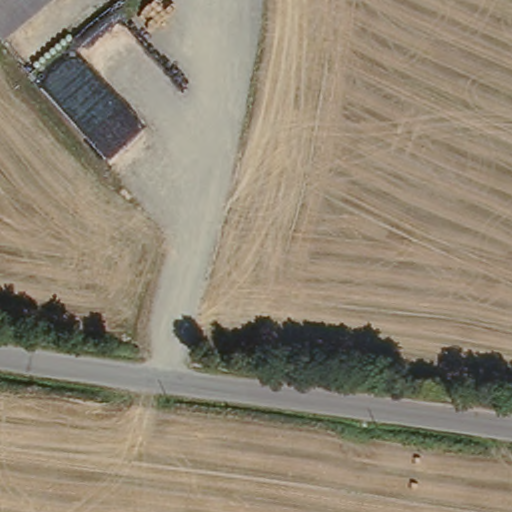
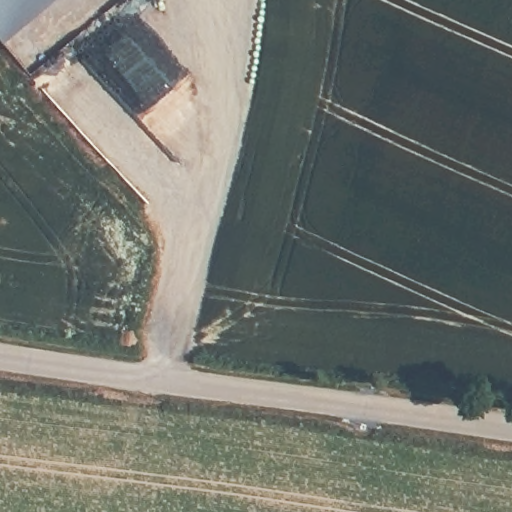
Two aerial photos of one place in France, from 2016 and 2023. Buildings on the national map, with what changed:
unchanged [(61,0),(0,48),(0,47),(0,0),(61,0)]

